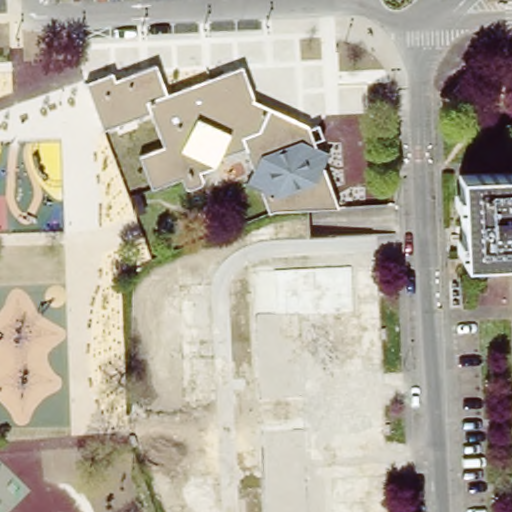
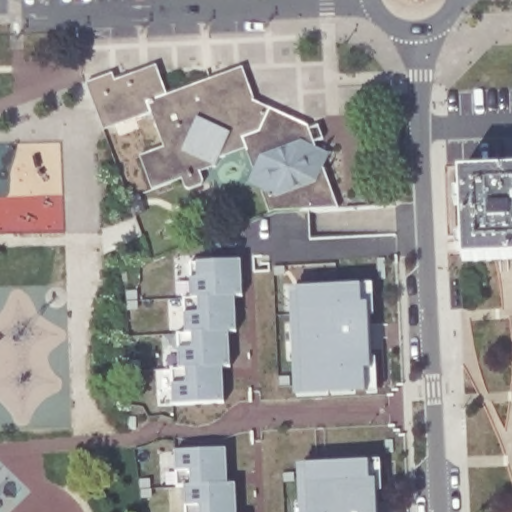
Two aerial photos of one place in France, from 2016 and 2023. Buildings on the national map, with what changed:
unchanged [(143,155),(165,146),(152,114),(107,130),(106,129),(90,85),(115,75),(117,81),(157,66),(168,95),(230,71),(260,141),(245,146),(245,144),(222,151),(220,156),(219,160),(216,162),(216,163),(201,167),(206,179),(190,185),(185,175),(155,186),(155,182),(143,155)]
unchanged [(230,71),(242,66),(256,100),(307,123),(260,141),(230,71)]
unchanged [(280,208),(278,205),(270,209),(260,185),(245,178),(252,164),(245,146),(260,141),(307,123),(310,126),(318,145),(331,151),(324,163),(335,187),(341,206),(282,207),(280,208)]
demolished [(114,198),(76,211),(61,166),(98,154),(114,198)]
unchanged [(471,171),(512,170),(512,257),(497,257),(471,171)]
unchanged [(464,258),(461,171),(471,171),(497,257),(464,258)]
new [(241,296),(233,297),(235,331),(226,332),(228,366),(220,366),(223,401),(172,403),(171,383),(170,367),(178,367),(177,347),(176,333),(184,332),(183,313),(183,297),(190,297),(190,277),(188,261),(195,261),(240,260),(241,296)]
demolished [(253,271),(351,267),(352,313),(301,315),(308,512),(263,512),(253,271)]
new [(295,396),(290,287),(360,285),(360,303),(368,303),(370,368),(363,368),(365,393),(295,396)]
new [(225,483),(234,483),(236,512),(184,512),(184,505),(183,485),(176,486),(176,470),(174,450),(225,448),(225,483)]
new [(297,463),(368,461),(369,480),(376,480),(377,512),(299,512),(297,463)]

